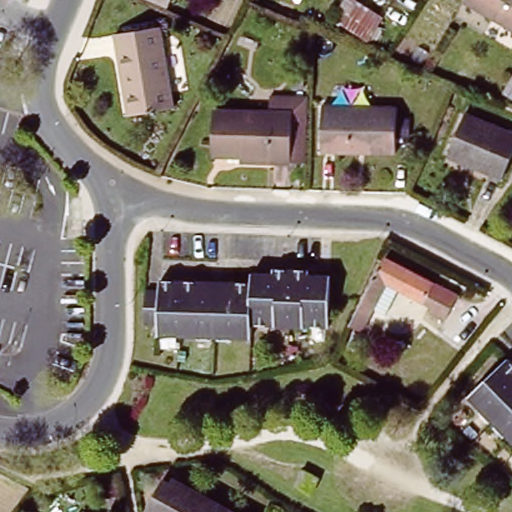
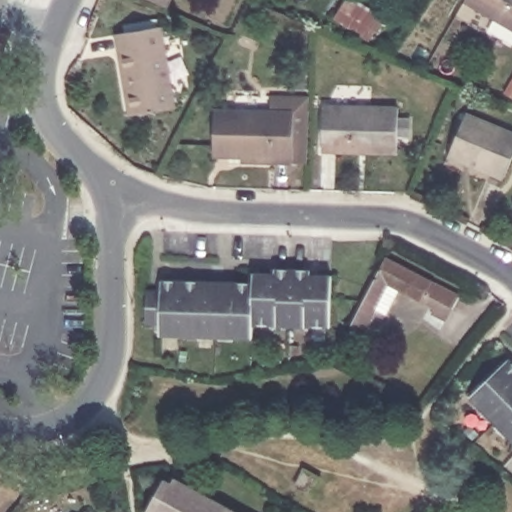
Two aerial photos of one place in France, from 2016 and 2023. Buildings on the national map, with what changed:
unchanged [(359,0),(383,16),(367,39),(335,17),(346,0),(359,0)]
unchanged [(512,0),(512,35),(463,6),(467,0),(512,0)]
unchanged [(180,108),(136,115),(122,34),(165,26),(180,108)]
unchanged [(400,149),(368,149),(368,144),(342,144),(342,149),(325,149),(325,103),(400,104),(400,149)]
unchanged [(256,158),(256,150),(228,149),(230,108),(309,107),(307,152),(307,159),(256,158)]
unchanged [(467,116),(512,135),(512,161),(505,179),(450,158),(467,116)]
unchanged [(462,288),(450,313),(437,307),(439,304),(392,283),(372,328),(360,323),(387,254),(462,288)]
unchanged [(253,275),(275,275),(275,270),(308,270),(308,276),(330,277),(328,327),(251,325),(251,336),(162,334),(162,323),(146,323),(147,292),(164,292),(164,282),(202,283),(233,284),(253,284),(253,275)]
unchanged [(512,360),(512,434),(475,397),(512,360)]
unchanged [(319,474),(311,492),(295,484),(302,467),(319,474)]
unchanged [(151,512),(168,479),(175,482),(179,475),(249,512),(152,512),(151,512)]
unchanged [(91,507),(97,512),(87,512),(91,507)]

